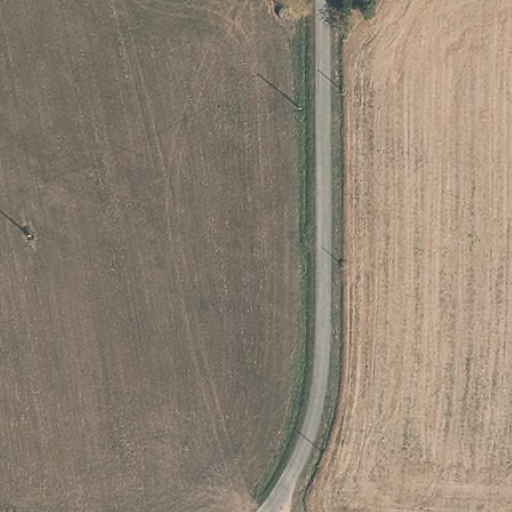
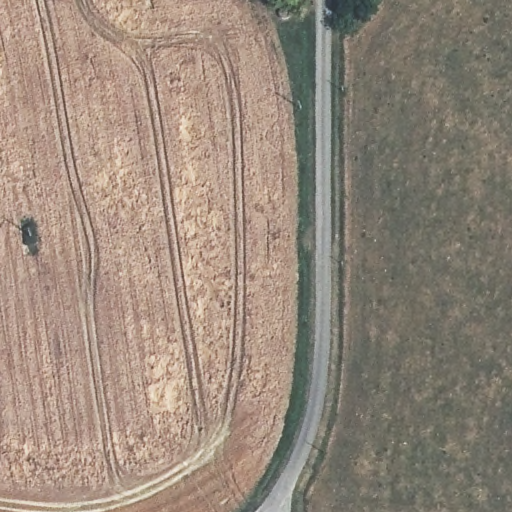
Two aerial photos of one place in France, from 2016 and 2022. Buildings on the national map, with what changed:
unchanged [(355,6),(355,0),(373,0),(372,7),(355,6)]

